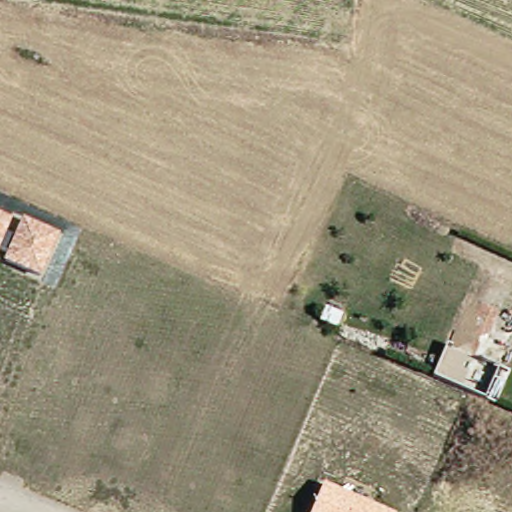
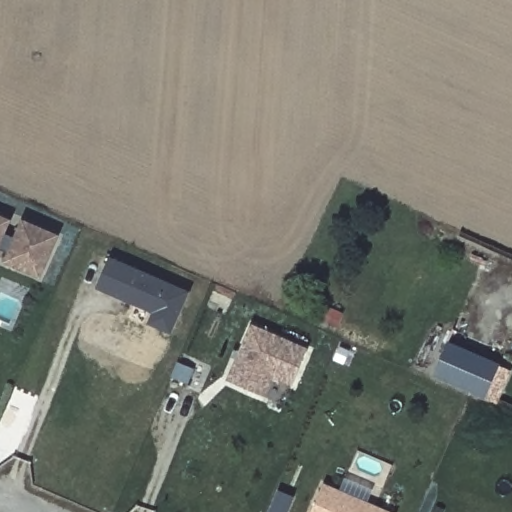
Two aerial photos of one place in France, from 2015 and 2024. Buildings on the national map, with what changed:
unchanged [(9,228),(17,231),(21,220),(59,235),(41,280),(1,264),(4,255),(0,253),(0,216),(12,221),(9,228)]
new [(173,337),(147,328),(152,316),(96,292),(109,260),(190,294),(173,337)]
new [(293,389),(273,382),(265,401),(225,385),(250,326),(309,350),(293,389)]
unchanged [(498,407),(484,401),(434,380),(448,345),(501,367),(511,374),(498,407)]
unchanged [(396,512),(312,512),(324,482),(396,512)]

